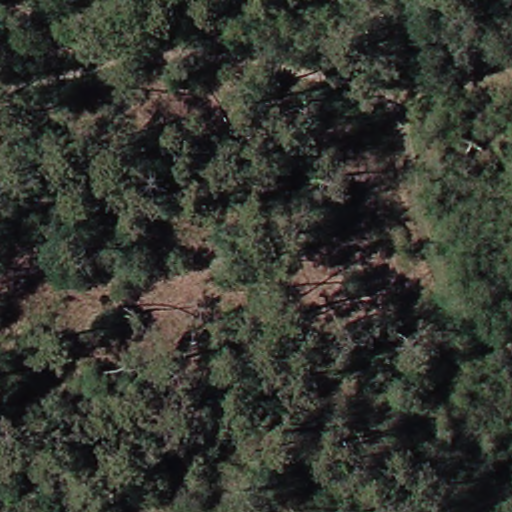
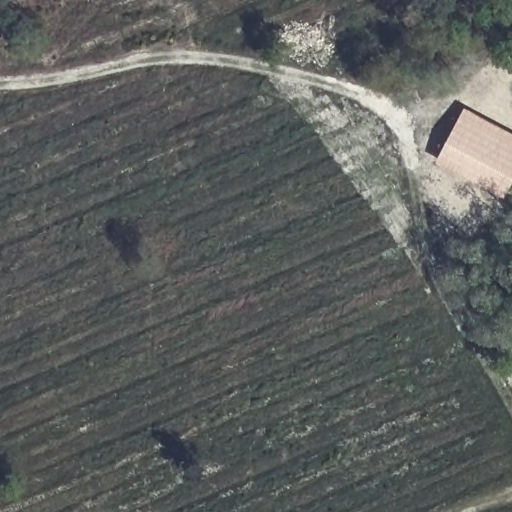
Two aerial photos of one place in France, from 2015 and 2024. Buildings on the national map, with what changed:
new [(464,107),(512,133),(512,182),(503,198),(435,162),(464,107)]
demolished [(492,115),(512,128),(512,180),(465,149),(492,115)]

